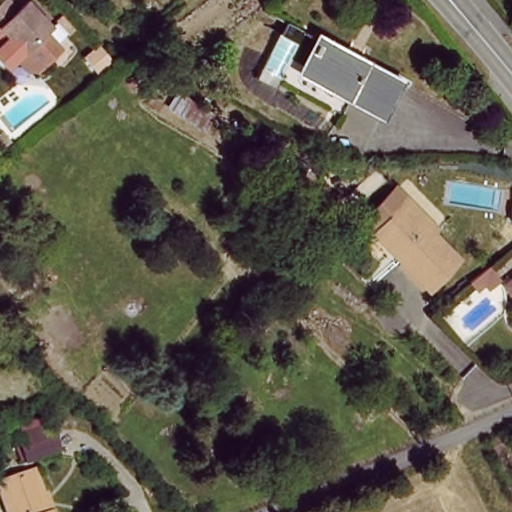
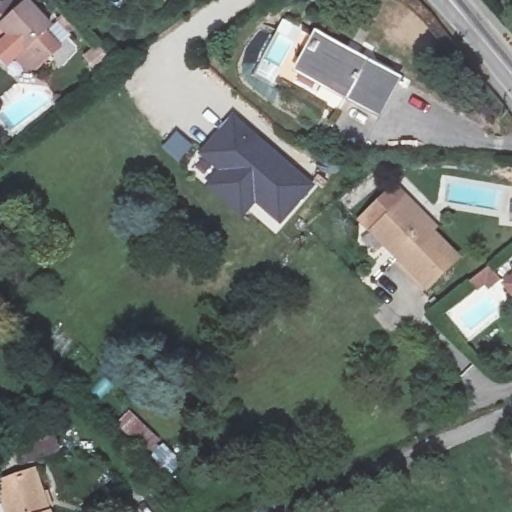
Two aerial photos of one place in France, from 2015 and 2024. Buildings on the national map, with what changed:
unchanged [(13,35),(1,44),(0,43),(0,1),(1,0),(9,0),(17,9),(27,0),(34,0),(54,20),(25,47),(13,35)]
unchanged [(395,81),(376,112),(305,72),(321,40),(395,81)]
new [(219,172),(200,154),(237,111),(318,183),(282,226),(257,203),(243,219),(208,186),(219,172)]
unchanged [(414,221),(400,205),(387,214),(379,201),(409,180),(448,227),(439,230),(414,221)]
unchanged [(458,256),(430,277),(417,286),(371,226),(376,222),(387,214),(400,205),(414,221),(439,230),(458,256)]
unchanged [(505,284),(512,279),(512,293),(505,284)]
new [(129,411),(175,456),(166,478),(114,427),(129,411)]
new [(23,465),(11,429),(38,420),(51,425),(60,452),(23,465)]
unchanged [(44,470),(55,512),(16,512),(8,480),(44,470)]

